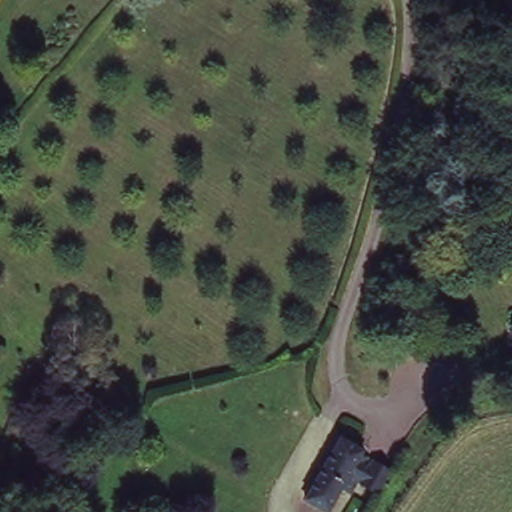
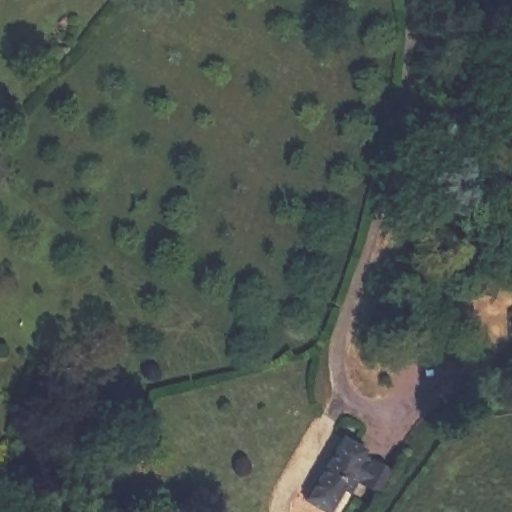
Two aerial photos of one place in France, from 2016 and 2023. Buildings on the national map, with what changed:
unchanged [(302,460),(323,433),(334,435),(393,461),(378,493),(363,486),(366,476),(352,469),(329,512),(317,512),(296,501),(316,466),(302,460)]

